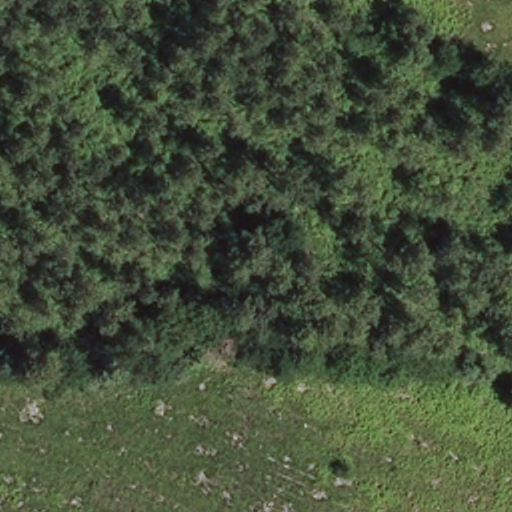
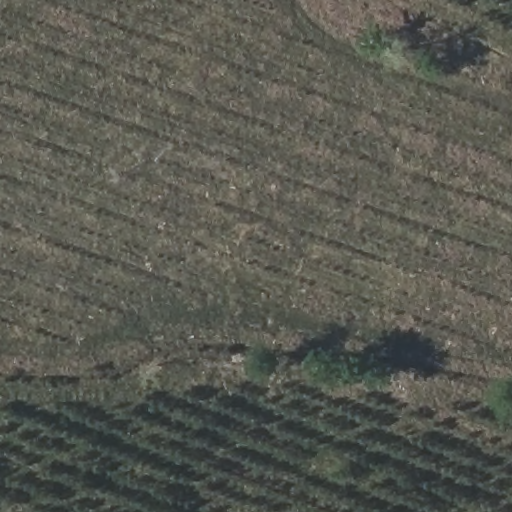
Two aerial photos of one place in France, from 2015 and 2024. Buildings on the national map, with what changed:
[]

